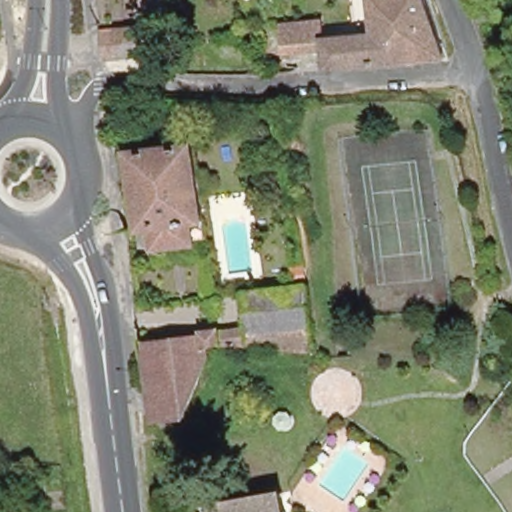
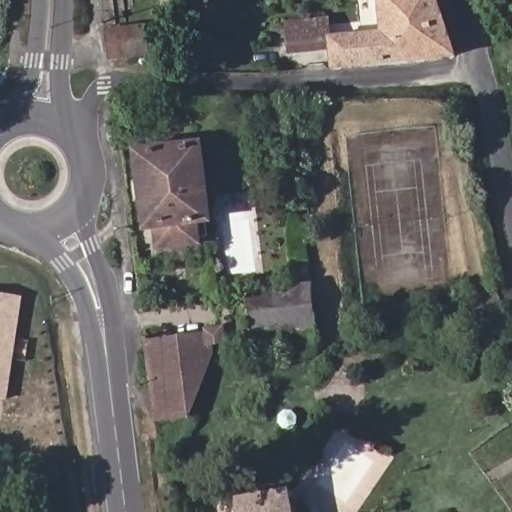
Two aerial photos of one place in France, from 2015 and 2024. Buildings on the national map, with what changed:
unchanged [(449,54),(327,63),(326,50),(326,33),(335,32),(378,28),(374,0),(432,0),(449,54)]
unchanged [(287,55),(285,22),(330,17),(335,32),(326,33),(326,50),(287,55)]
unchanged [(107,59),(105,33),(142,28),(144,55),(107,59)]
unchanged [(199,236),(160,240),(157,221),(148,222),(139,147),(153,146),(154,141),(177,139),(179,142),(198,142),(211,229),(198,230),(199,236)]
unchanged [(253,331),(251,289),(312,286),(320,350),(217,342),(205,372),(181,413),(153,416),(144,344),(208,338),(207,329),(239,326),(239,332),(253,331)]
new [(6,401),(0,400),(0,293),(22,296),(6,401)]
unchanged [(281,494),(285,512),(275,512),(271,496),(281,494)]
unchanged [(271,496),(275,512),(202,512),(201,510),(271,496)]

